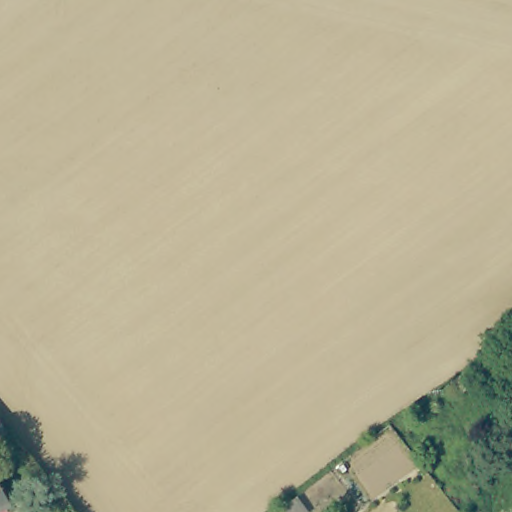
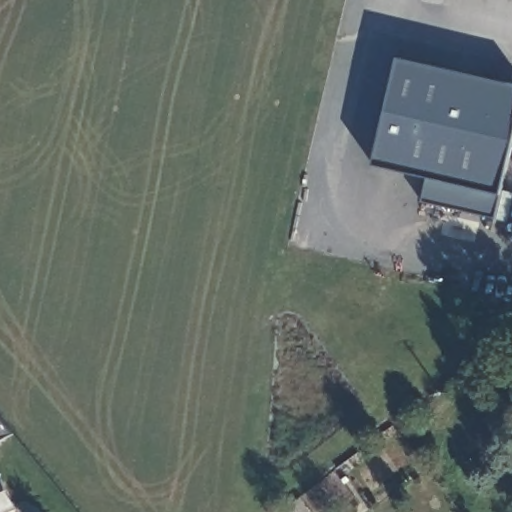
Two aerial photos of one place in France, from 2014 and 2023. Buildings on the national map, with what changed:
new [(497,216),(425,200),(433,176),(374,164),(398,59),(512,83),(512,147),(501,193),(497,216)]
unchanged [(0,447),(0,421),(15,438),(0,447)]
unchanged [(0,512),(0,481),(16,507),(6,512),(0,512)]

